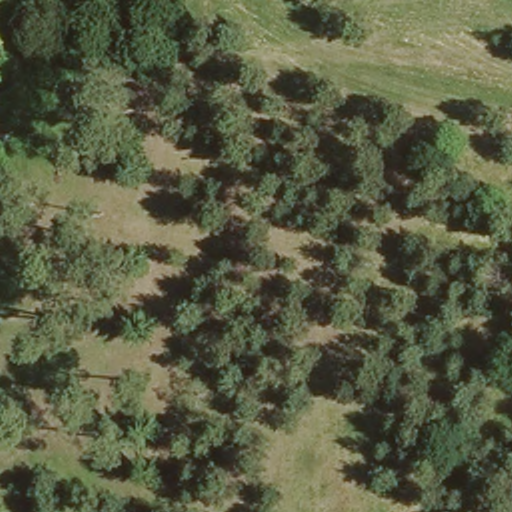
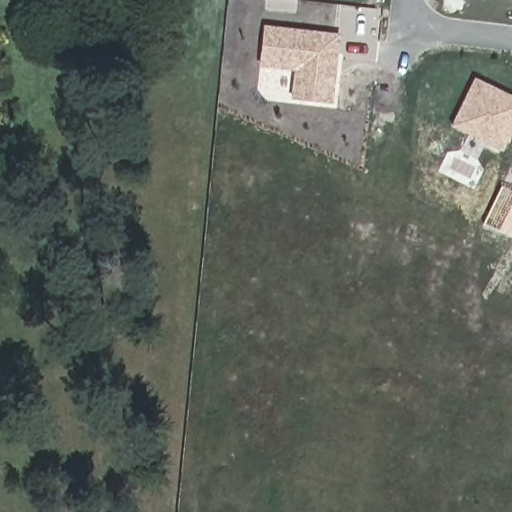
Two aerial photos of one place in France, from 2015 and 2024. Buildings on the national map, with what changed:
new [(332,105),(291,100),(295,71),(257,67),(263,25),(341,34),(332,105)]
new [(512,96),(512,133),(503,152),(451,126),(474,78),(512,96)]
new [(512,192),(512,235),(511,237),(484,225),(501,187),(512,192)]

